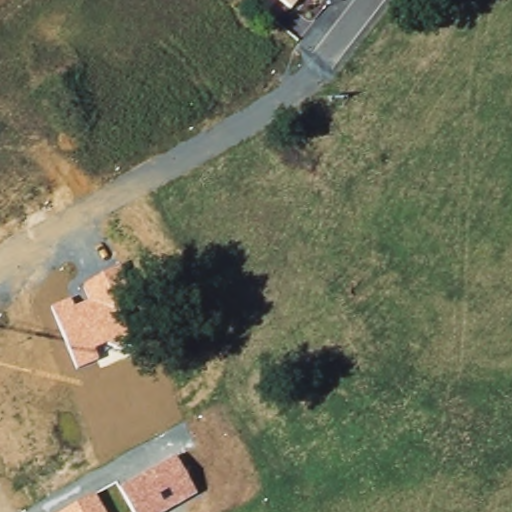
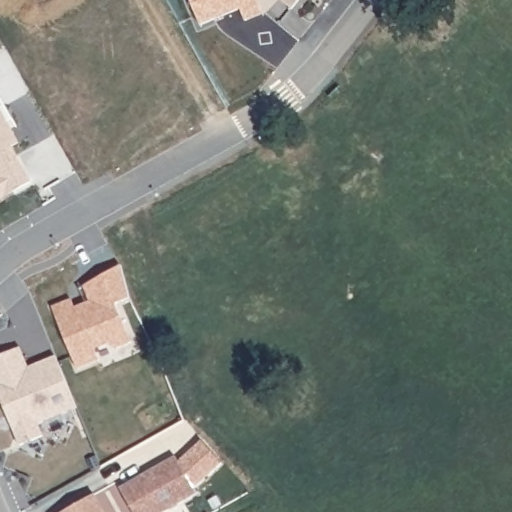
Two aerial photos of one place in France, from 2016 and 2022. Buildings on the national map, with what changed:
unchanged [(280,0),(299,0),(291,9),(280,0)]
new [(7,107),(1,111),(19,143),(12,147),(32,183),(0,201),(0,96),(7,107)]
unchanged [(70,300),(73,307),(89,301),(84,285),(121,265),(135,299),(120,304),(132,337),(114,347),(110,344),(95,348),(99,359),(76,369),(52,308),(70,300)]
new [(20,349),(28,368),(56,357),(77,409),(38,424),(43,437),(20,447),(0,398),(0,357),(20,349)]
unchanged [(196,495),(168,512),(132,512),(118,488),(174,456),(196,495)]
unchanged [(103,512),(65,512),(93,495),(103,512)]

